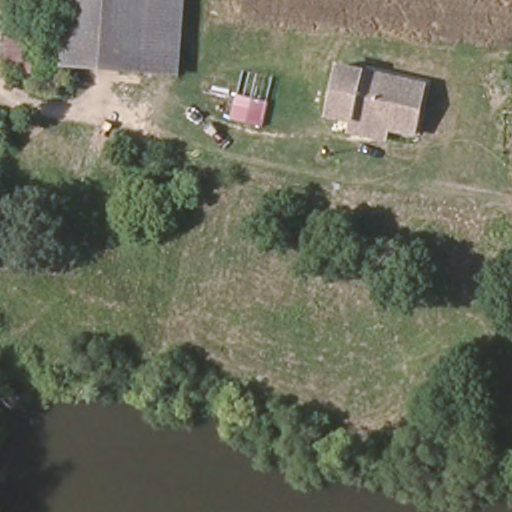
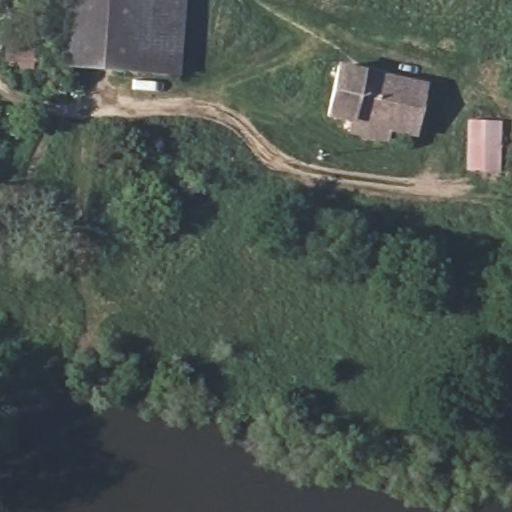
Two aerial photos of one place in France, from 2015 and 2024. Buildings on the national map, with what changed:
unchanged [(10,23),(11,0),(32,0),(31,22),(30,39),(36,38),(36,74),(8,73),(10,23)]
unchanged [(64,68),(68,0),(186,0),(181,78),(64,68)]
unchanged [(350,130),(352,118),(328,113),(340,59),(362,64),(387,69),(431,79),(419,131),(392,126),(389,139),(350,130)]
new [(500,172),(466,170),(467,120),(502,121),(500,172)]

